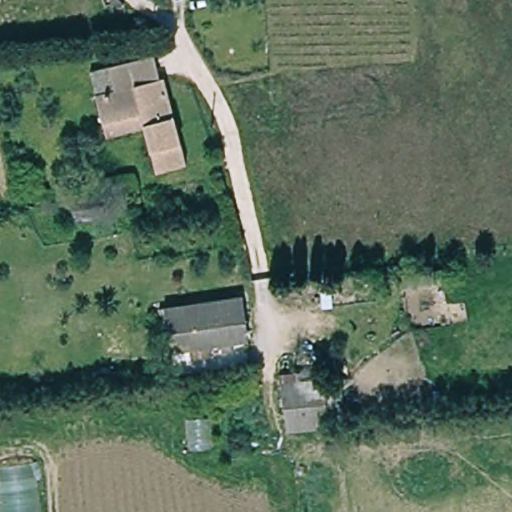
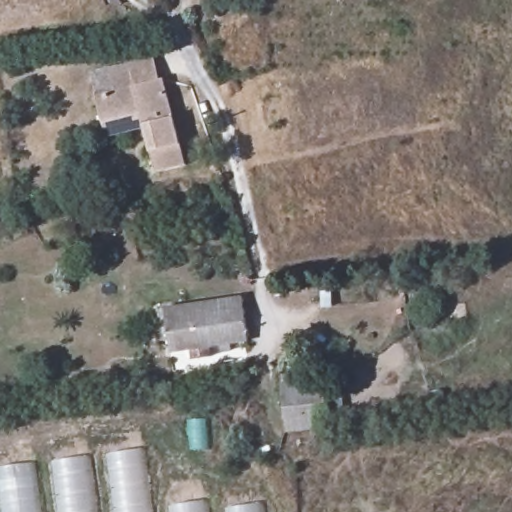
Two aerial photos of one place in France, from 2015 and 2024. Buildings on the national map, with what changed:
unchanged [(103,121),(100,95),(118,92),(114,65),(157,59),(160,81),(170,80),(185,169),(153,174),(147,130),(105,135),(103,121)]
unchanged [(169,351),(164,312),(241,301),(248,340),(169,351)]
unchanged [(312,375),(314,384),(326,382),(334,428),(277,436),(268,380),(312,375)]
new [(152,512),(116,512),(109,454),(144,450),(152,512)]
new [(96,512),(61,512),(55,462),(89,458),(96,512)]
unchanged [(5,512),(0,471),(0,467),(33,463),(40,512),(5,512)]
new [(208,512),(172,512),(171,507),(207,501),(208,512)]
new [(263,512),(228,512),(227,510),(262,503),(263,512)]

